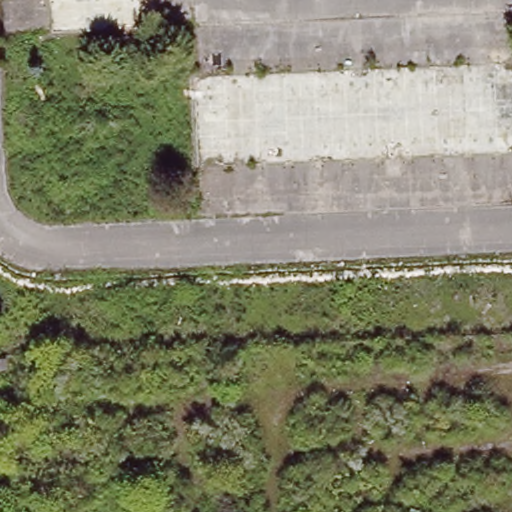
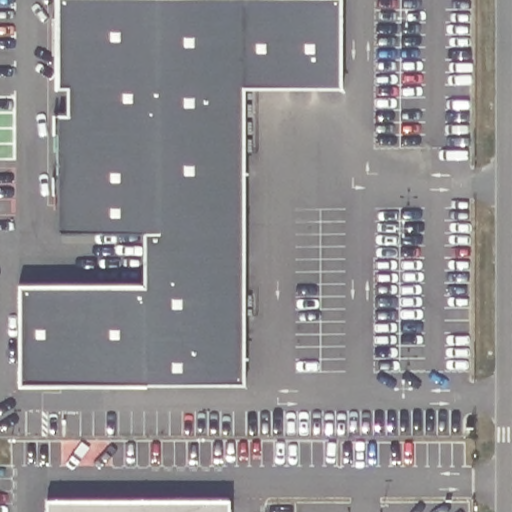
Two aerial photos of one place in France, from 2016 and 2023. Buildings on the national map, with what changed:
new [(18,385),(18,282),(143,281),(143,234),(56,234),(56,135),(53,135),(53,112),(64,112),(65,87),(55,88),(55,0),(343,0),(343,89),(246,88),(246,383),(18,385)]
demolished [(143,26),(53,30),(52,0),(142,0),(143,26)]
demolished [(512,59),(512,149),(198,163),(193,74),(512,59)]
demolished [(5,365),(0,365),(0,354),(4,354),(5,365)]
new [(232,497),(232,512),(48,512),(48,497),(232,497)]

